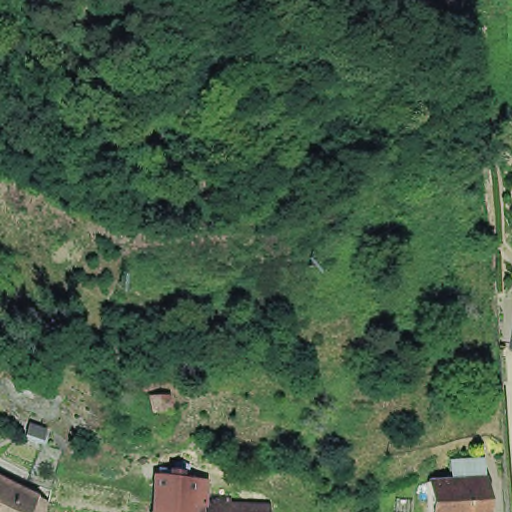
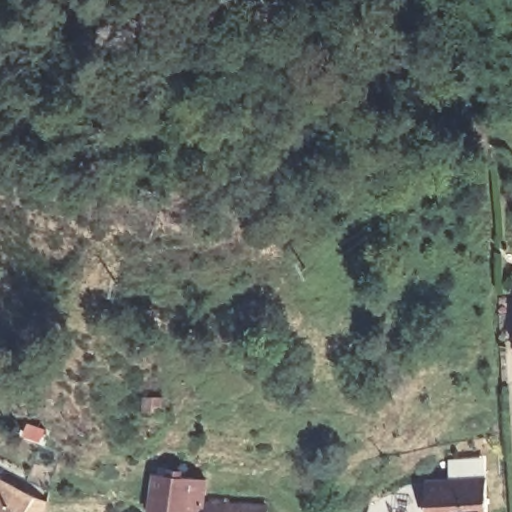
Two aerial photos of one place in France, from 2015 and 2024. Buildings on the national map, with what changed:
unchanged [(147,414),(147,397),(164,397),(164,414),(147,414)]
unchanged [(49,430),(44,445),(19,437),(23,423),(49,430)]
unchanged [(192,481),(204,482),(202,504),(192,504),(191,512),(151,512),(152,502),(155,476),(193,479),(192,481)]
unchanged [(0,512),(0,480),(35,498),(27,512),(0,512)]
unchanged [(486,481),(487,512),(429,512),(427,484),(486,481)]
unchanged [(47,505),(45,512),(27,512),(35,498),(47,505)]
unchanged [(266,507),(265,512),(205,512),(206,506),(266,507)]

